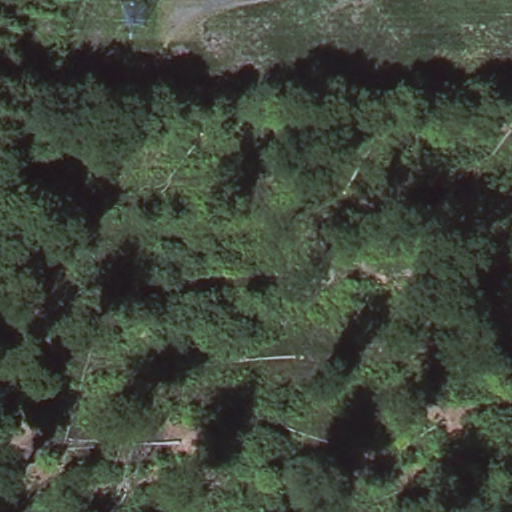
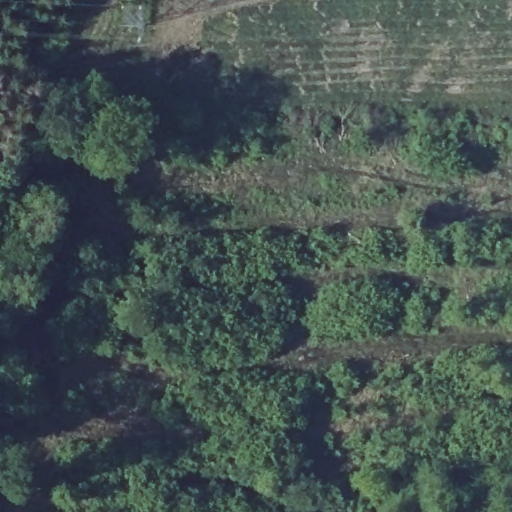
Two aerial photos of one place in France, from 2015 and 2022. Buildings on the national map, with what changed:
[]

